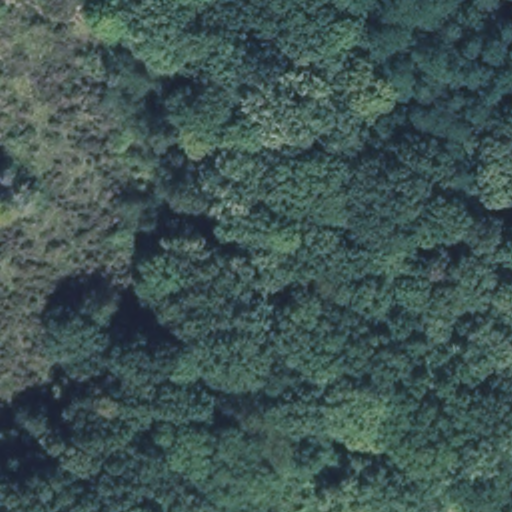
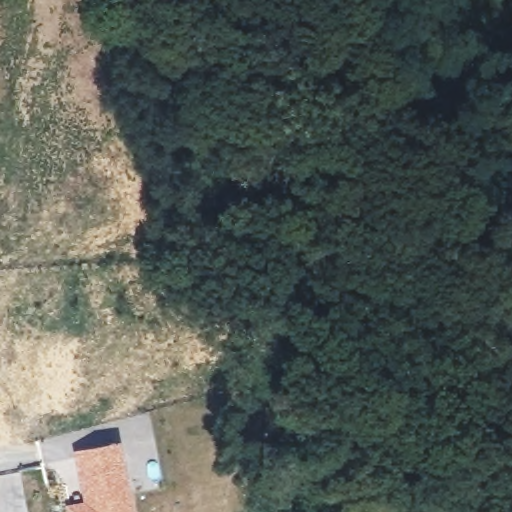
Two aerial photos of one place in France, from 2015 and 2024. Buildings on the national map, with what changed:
new [(131,512),(89,512),(77,452),(118,445),(131,512)]

